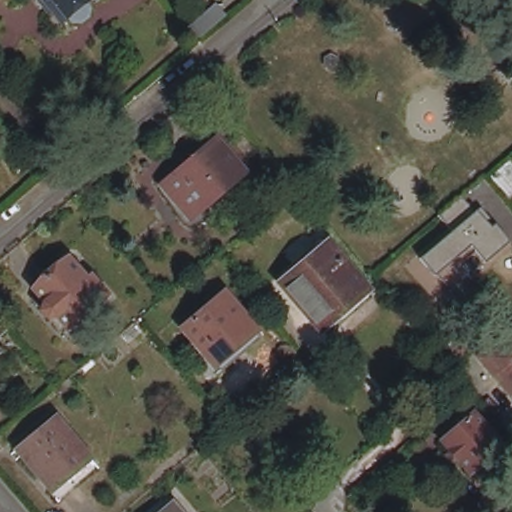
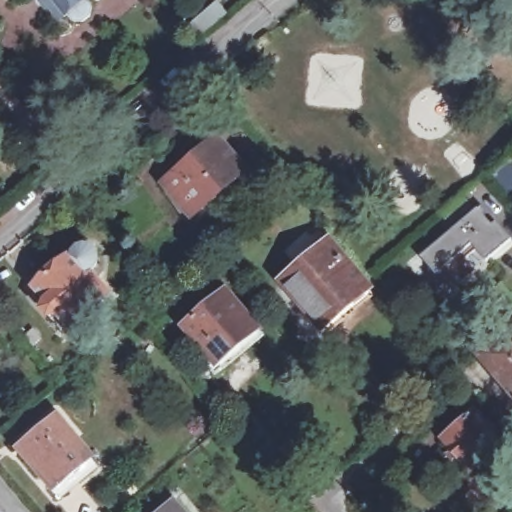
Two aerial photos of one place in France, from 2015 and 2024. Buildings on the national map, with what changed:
unchanged [(68,8),(62,0),(98,0),(99,4),(87,13),(82,13),(79,12),(72,5),(68,8)]
unchanged [(227,14),(203,34),(194,24),(217,3),(227,14)]
unchanged [(228,181),(192,211),(167,180),(190,161),(216,138),(244,168),(228,181)]
unchanged [(509,196),(492,175),(511,160),(512,162),(512,193),(509,196)]
unchanged [(488,262),(472,246),(460,256),(476,271),(452,293),(421,262),(457,229),(442,214),(465,198),(480,212),(507,242),(488,262)]
unchanged [(366,286),(321,325),(284,282),(314,257),(329,244),(366,286)]
unchanged [(119,283),(80,316),(44,275),(79,245),(96,266),(101,263),(119,283)]
unchanged [(507,313),(492,319),(483,295),(497,289),(507,313)]
unchanged [(214,364),(192,340),(182,327),(224,291),(257,328),(214,364)]
unchanged [(0,332),(0,323),(5,329),(0,332)]
unchanged [(481,356),(512,331),(512,392),(481,356)]
unchanged [(504,444),(470,472),(442,440),(476,411),(504,444)]
unchanged [(91,458),(55,487),(19,444),(57,414),(91,458)]
unchanged [(174,501),(183,512),(160,512),(174,501)]

